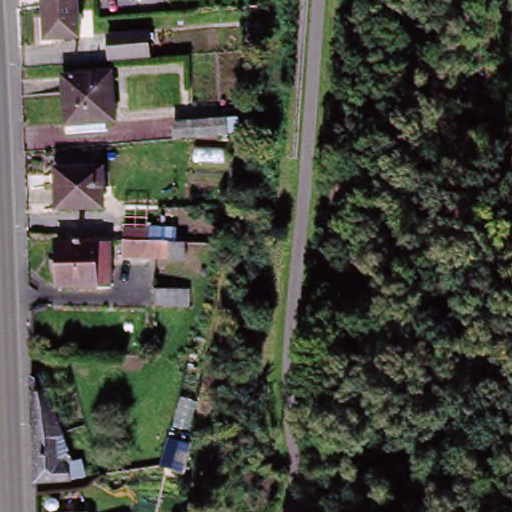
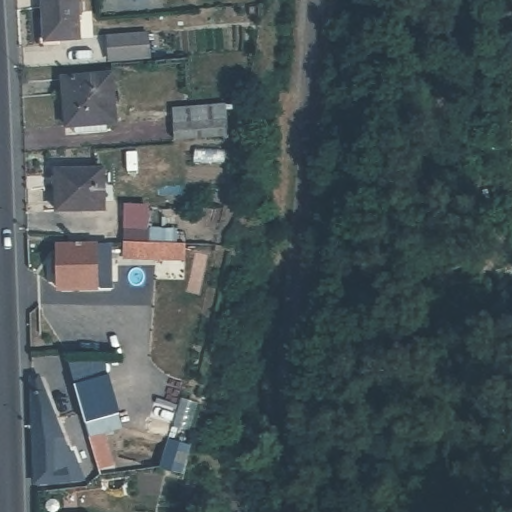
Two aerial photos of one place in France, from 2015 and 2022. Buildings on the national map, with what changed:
unchanged [(73,40),(40,41),(38,0),(71,0),(73,40)]
unchanged [(129,0),(136,0),(130,2),(129,0)]
unchanged [(183,25),(166,29),(164,16),(181,14),(183,25)]
unchanged [(106,62),(104,36),(143,34),(144,59),(106,62)]
unchanged [(69,126),(66,75),(112,73),(114,125),(109,125),(110,131),(78,134),(78,126),(69,126)]
unchanged [(178,135),(176,117),(228,112),(229,130),(178,135)]
unchanged [(102,210),(56,211),(55,171),(101,170),(102,210)]
unchanged [(147,258),(128,257),(128,242),(129,227),(152,228),(152,242),(181,242),(181,259),(147,258)]
unchanged [(78,291),(78,288),(58,287),(58,245),(96,245),(113,245),(111,283),(111,290),(96,290),(78,291)]
demolished [(186,311),(155,310),(156,293),(186,295),(186,311)]
new [(104,360),(109,374),(120,412),(124,430),(92,440),(87,425),(75,385),(68,361),(104,360)]
unchanged [(64,485),(30,487),(29,442),(26,383),(33,381),(47,417),(55,440),(69,439),(78,458),(62,460),(53,461),(53,468),(61,467),(71,467),(75,483),(64,485)]

